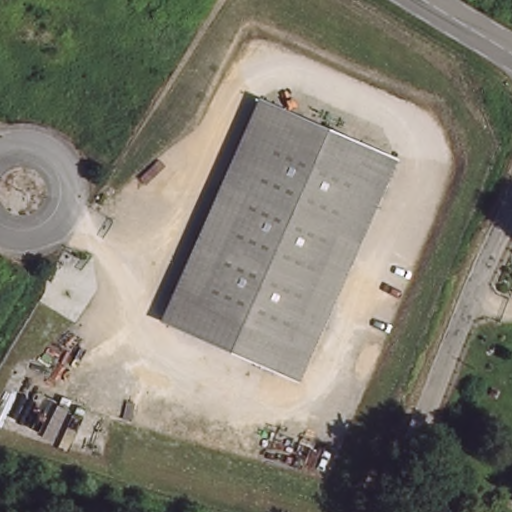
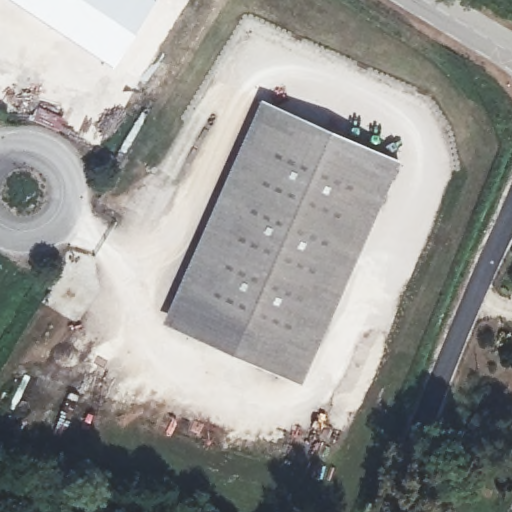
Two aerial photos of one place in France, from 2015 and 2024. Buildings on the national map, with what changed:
new [(112,65),(14,0),(154,0),(112,65)]
unchanged [(399,155),(298,376),(164,316),(260,96),(399,155)]

